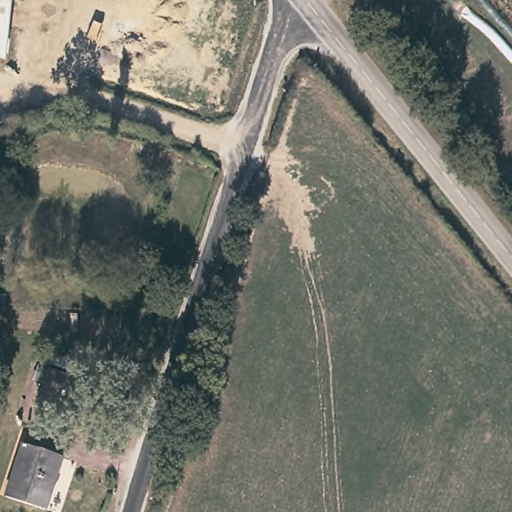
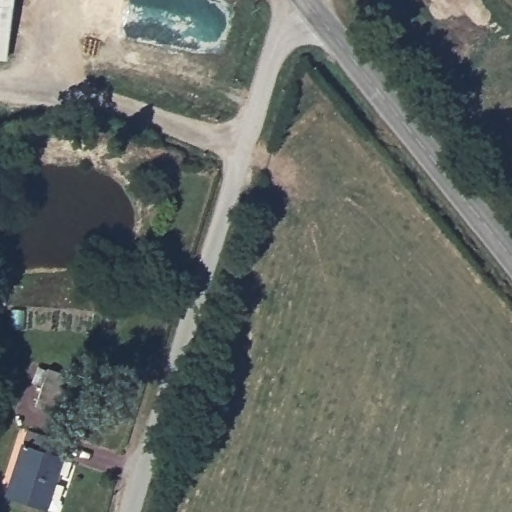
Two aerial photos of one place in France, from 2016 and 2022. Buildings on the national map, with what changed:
unchanged [(7,59),(0,59),(0,0),(13,0),(7,59)]
unchanged [(66,372),(55,409),(35,403),(46,366),(66,372)]
unchanged [(55,440),(51,455),(64,460),(48,512),(6,498),(28,433),(55,440)]

